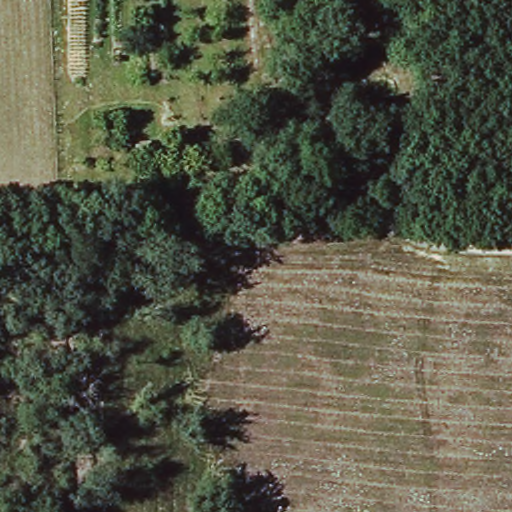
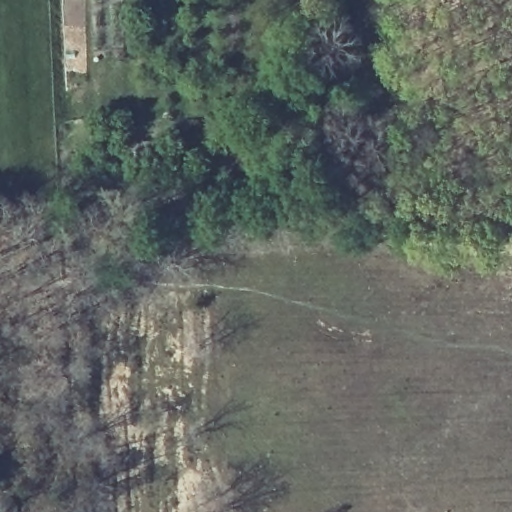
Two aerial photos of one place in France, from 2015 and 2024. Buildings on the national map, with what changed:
[]

